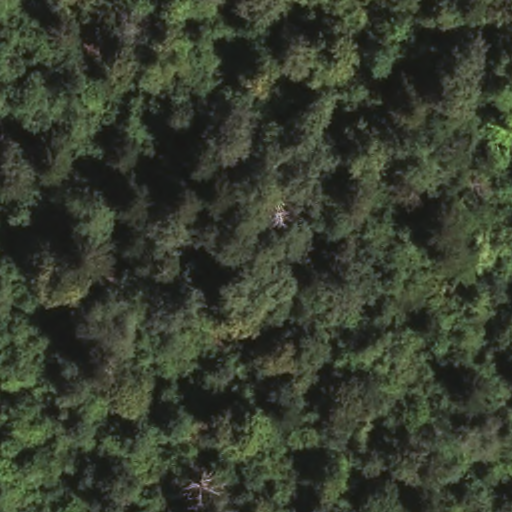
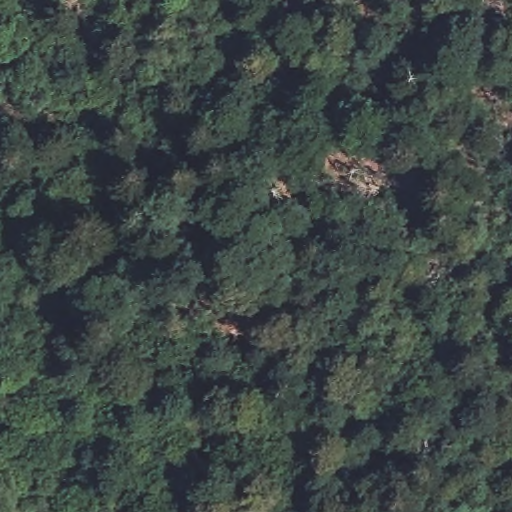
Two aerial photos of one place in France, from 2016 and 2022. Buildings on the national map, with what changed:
[]

